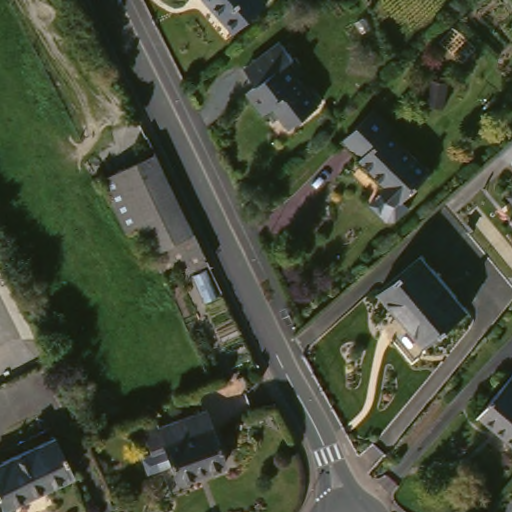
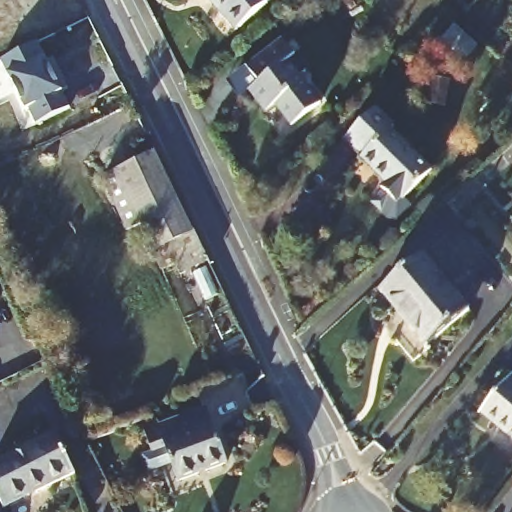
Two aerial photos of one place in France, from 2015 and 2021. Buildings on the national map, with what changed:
unchanged [(276,2),(244,30),(232,17),(217,0),(274,0),(276,2)]
unchanged [(297,51),(300,49),(311,64),(303,71),(324,98),(295,119),(280,99),(269,107),(252,85),(262,77),(251,61),(285,34),(297,51)]
new [(46,64),(52,61),(67,90),(60,94),(67,109),(34,125),(26,109),(23,111),(0,64),(0,61),(36,43),(46,64)]
unchanged [(441,171),(412,200),(411,198),(406,203),(389,187),(394,182),(370,157),(371,155),(355,138),(385,107),(403,125),(399,129),(441,171)]
unchanged [(202,233),(174,246),(163,252),(149,224),(136,231),(111,179),(163,153),(202,233)]
unchanged [(202,233),(217,265),(190,278),(174,246),(202,233)]
unchanged [(427,255),(472,308),(428,345),(384,290),(427,255)]
demolished [(0,339),(0,291),(19,329),(0,339)]
unchanged [(489,413),(512,385),(512,432),(489,413)]
unchanged [(234,460),(186,478),(175,444),(161,449),(152,424),(166,418),(167,423),(215,406),(234,460)]
unchanged [(13,505),(0,479),(0,463),(64,432),(83,471),(13,505)]

